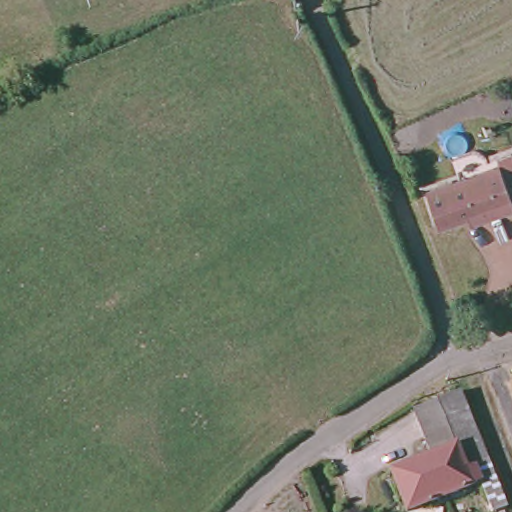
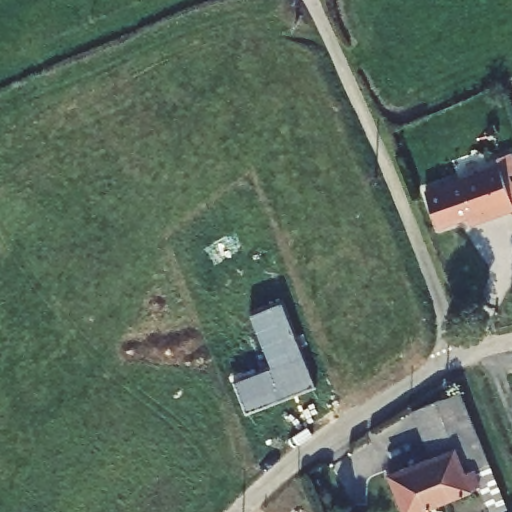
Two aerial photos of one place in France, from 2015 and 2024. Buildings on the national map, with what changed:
unchanged [(468,214),(438,226),(424,194),(501,165),(512,194),(512,208),(483,216),(470,219),(468,214)]
new [(236,379),(272,365),(252,312),(284,300),(316,385),(248,411),(236,379)]
unchanged [(497,482),(509,512),(493,512),(483,488),(425,512),(402,512),(387,477),(429,460),(411,417),(462,395),(492,470),(497,482)]

